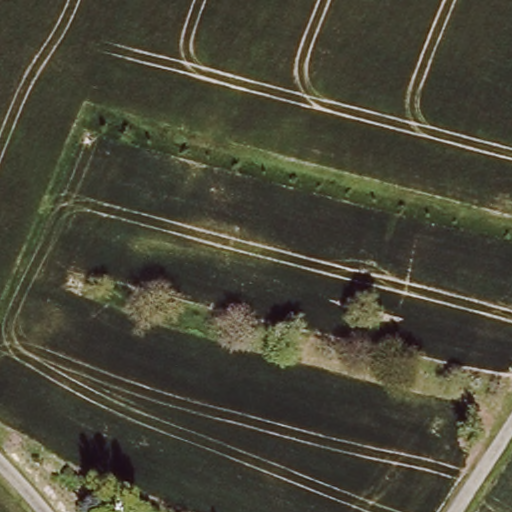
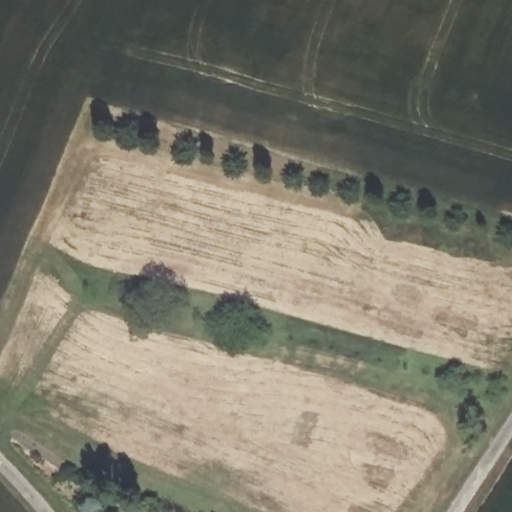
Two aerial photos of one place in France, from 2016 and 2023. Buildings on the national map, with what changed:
[]

